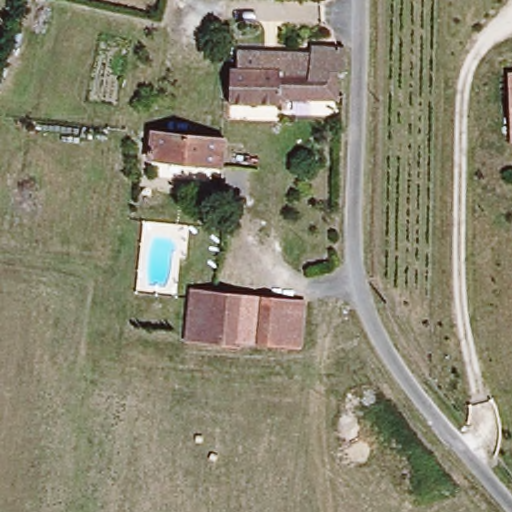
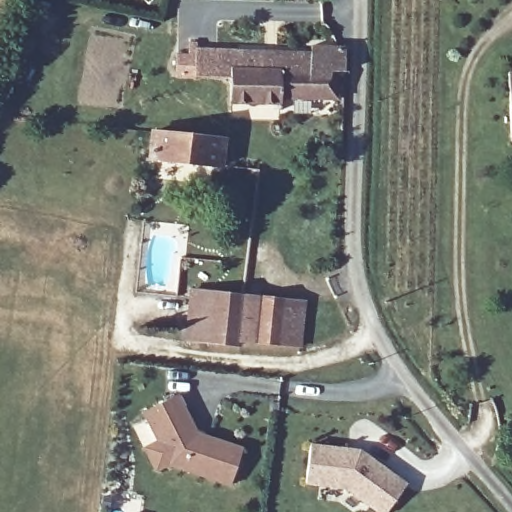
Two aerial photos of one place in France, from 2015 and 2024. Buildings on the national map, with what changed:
unchanged [(340,94),(282,94),(282,101),(234,102),(237,68),(239,49),(245,48),(260,48),(307,48),(307,42),(343,43),(345,43),(346,60),(337,64),(340,94)]
unchanged [(512,77),(512,149),(510,150),(505,78),(512,77)]
unchanged [(222,164),(152,157),(155,131),(225,137),(222,164)]
unchanged [(292,340),(240,335),(238,342),(189,338),(195,287),(296,297),(292,340)]
new [(197,431),(242,446),(230,486),(167,465),(155,471),(142,447),(154,441),(140,412),(179,394),(197,431)]
new [(360,450),(407,484),(386,512),(373,512),(342,489),(305,485),(310,445),(360,450)]

